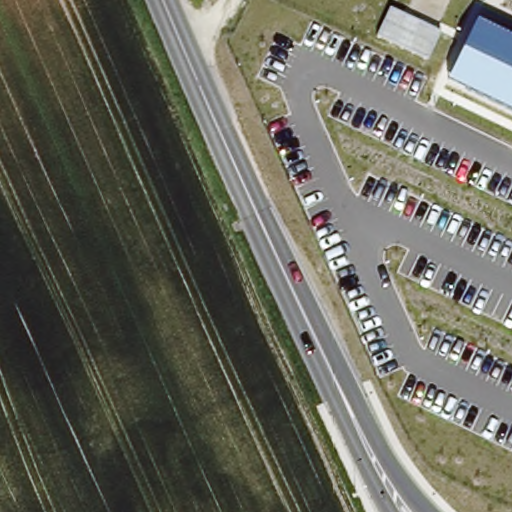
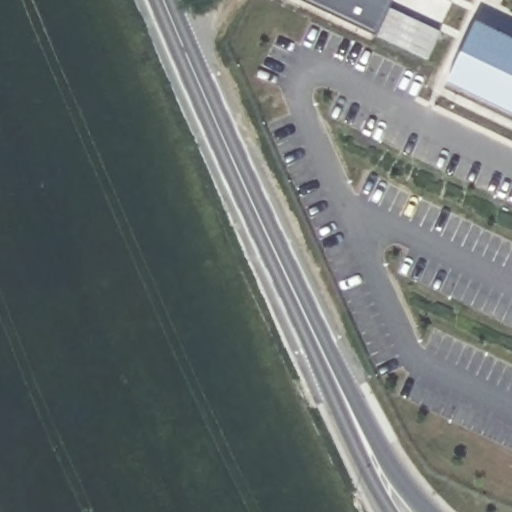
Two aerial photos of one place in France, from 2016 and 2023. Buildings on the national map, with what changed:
new [(390,8),(377,34),(303,0),(393,0),(390,8)]
unchanged [(440,31),(428,58),(377,34),(390,8),(440,31)]
unchanged [(447,80),(477,22),(512,39),(512,111),(447,80)]

